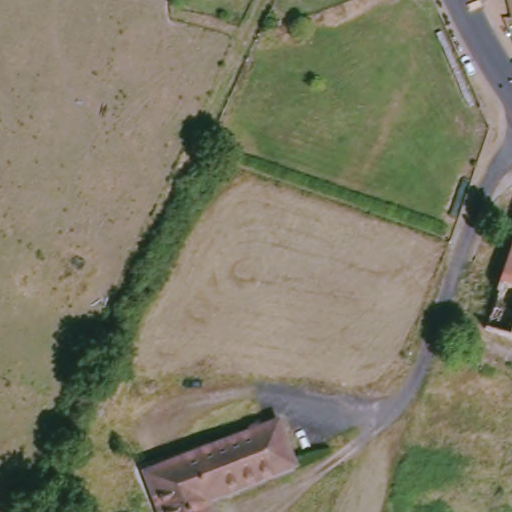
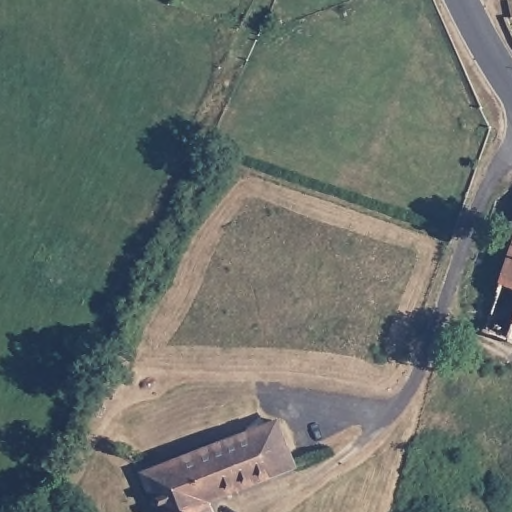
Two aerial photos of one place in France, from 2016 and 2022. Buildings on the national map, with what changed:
unchanged [(512,257),(512,338),(486,330),(512,257)]
unchanged [(141,472),(276,422),(293,467),(203,502),(207,512),(156,512),(141,472)]

